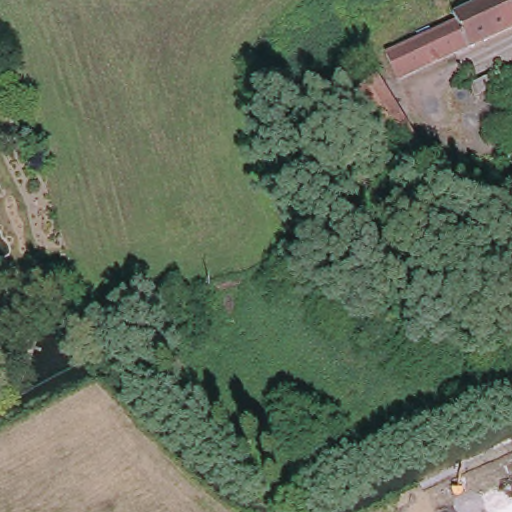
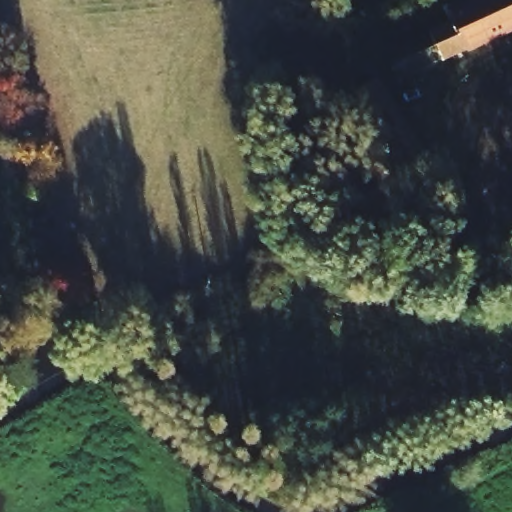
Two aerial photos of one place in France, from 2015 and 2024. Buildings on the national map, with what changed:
unchanged [(397,82),(384,57),(454,24),(449,15),(483,0),(512,0),(512,28),(397,82)]
unchanged [(409,178),(357,94),(369,86),(366,81),(377,75),(380,81),(431,164),(409,178)]

